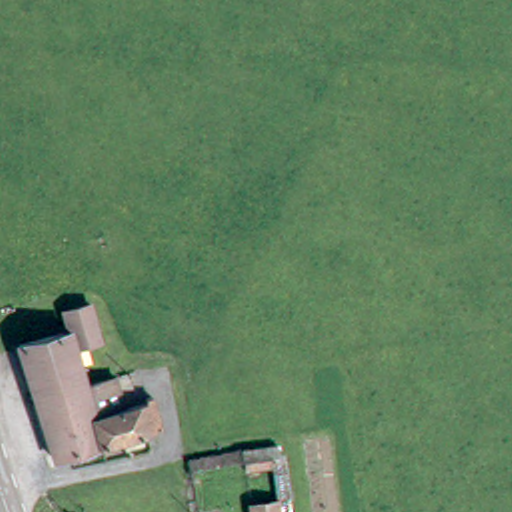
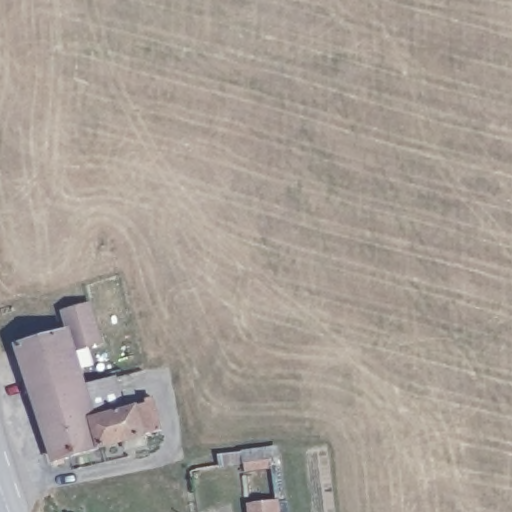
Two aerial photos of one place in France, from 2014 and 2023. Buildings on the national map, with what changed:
unchanged [(13,343),(65,330),(59,306),(85,299),(97,348),(77,353),(85,381),(79,383),(30,394),(13,343)]
unchanged [(88,419),(95,447),(50,460),(30,394),(79,383),(85,381),(105,377),(107,384),(115,382),(124,409),(88,419)]
unchanged [(154,430),(95,447),(88,419),(124,409),(146,403),(154,430)]
unchanged [(250,467),(275,463),(278,489),(252,491),(250,467)]
unchanged [(250,501),(275,498),(276,512),(251,512),(250,501)]

